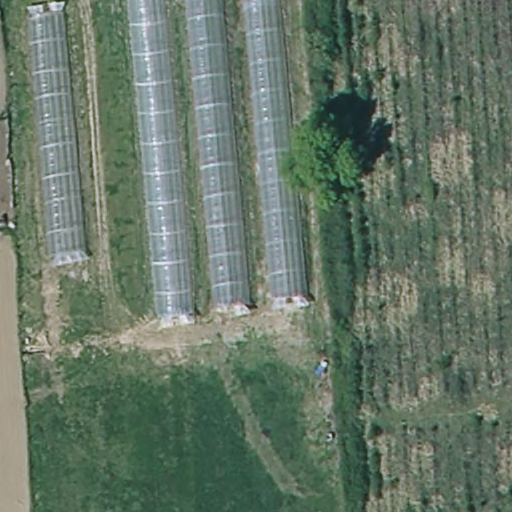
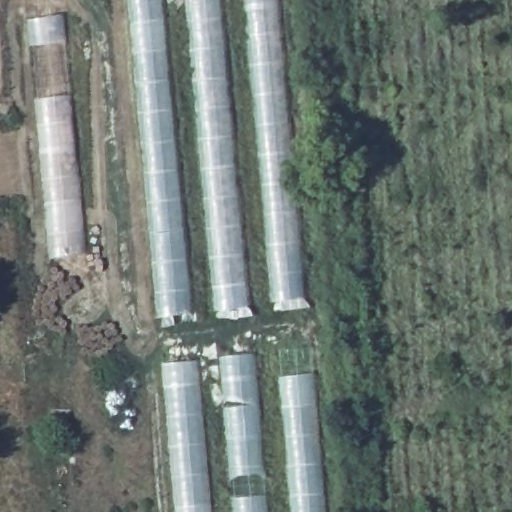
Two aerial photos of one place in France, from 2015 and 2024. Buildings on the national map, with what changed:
unchanged [(307,298),(161,320),(130,0),(277,0),(307,298)]
unchanged [(84,260),(54,263),(31,13),(60,11),(84,260)]
new [(325,512),(290,512),(277,351),(311,349),(325,512)]
new [(254,354),(268,512),(232,512),(218,357),(254,354)]
new [(198,360),(211,512),(175,512),(163,362),(198,360)]

